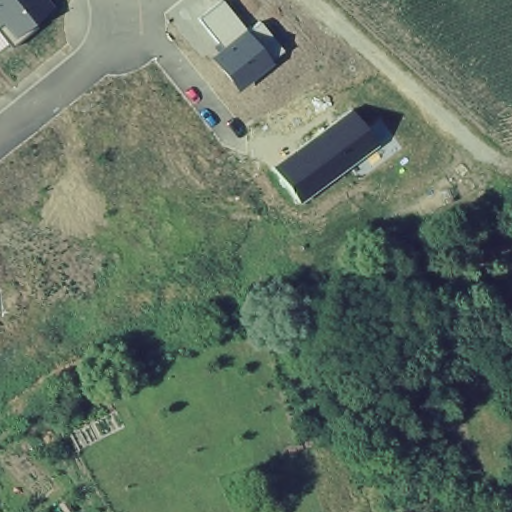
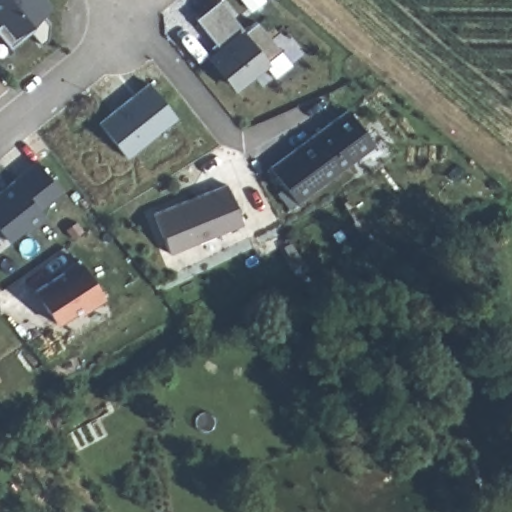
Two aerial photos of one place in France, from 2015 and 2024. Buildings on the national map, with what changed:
unchanged [(30,22),(34,27),(9,48),(0,36),(0,0),(43,0),(49,7),(30,22)]
unchanged [(218,0),(243,31),(256,21),(279,50),(234,87),(211,57),(221,50),(195,18),(217,0),(218,0)]
new [(155,82),(185,116),(128,157),(101,122),(155,82)]
unchanged [(348,109),(373,143),(295,201),(269,166),(348,109)]
new [(36,161),(60,190),(37,209),(43,217),(28,229),(24,225),(7,239),(0,231),(0,191),(13,180),(36,161)]
new [(241,223),(168,253),(152,213),(225,183),(241,223)]
new [(59,268),(76,257),(78,260),(102,297),(80,311),(73,309),(55,322),(34,289),(61,271),(59,268)]

